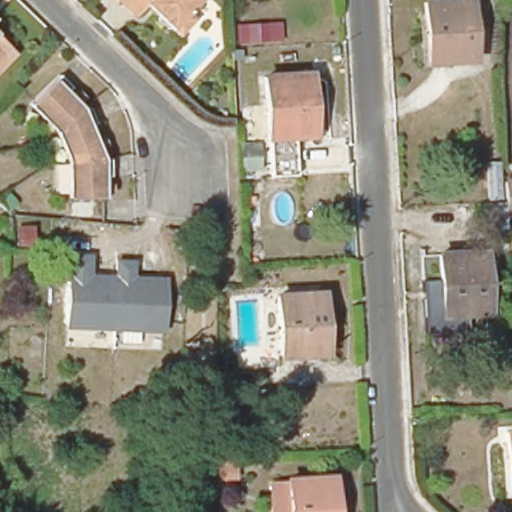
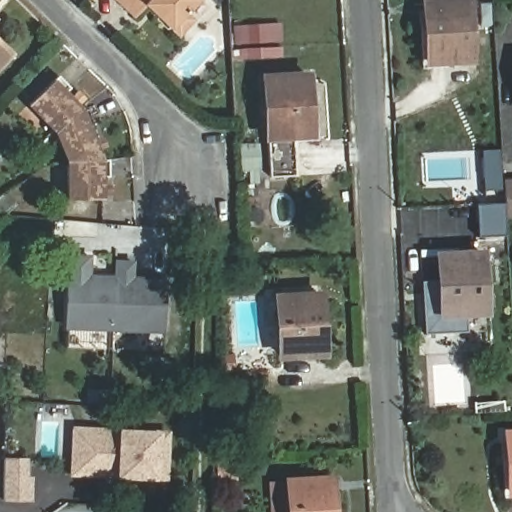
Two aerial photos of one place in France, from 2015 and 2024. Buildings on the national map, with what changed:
unchanged [(180,41),(146,8),(135,20),(115,1),(116,0),(200,0),(202,1),(188,16),(196,23),(180,41)]
unchanged [(428,61),(426,3),(470,0),(472,59),(428,61)]
new [(233,25),(283,22),(285,42),(234,45),(233,25)]
unchanged [(6,52),(0,58),(0,47),(6,52)]
unchanged [(268,137),(265,78),(309,75),(312,134),(268,137)]
unchanged [(89,113),(95,128),(90,131),(103,164),(110,164),(110,181),(104,181),(103,202),(68,202),(67,165),(56,136),(30,109),(60,80),(72,92),(67,96),(81,110),(83,115),(89,113)]
new [(261,172),(241,173),(239,143),(259,142),(260,156),(261,172)]
unchanged [(506,200),(505,180),(512,180),(512,216),(507,216),(506,200)]
unchanged [(165,332),(67,329),(67,253),(93,253),(92,274),(116,275),(117,260),(137,260),(136,275),(167,276),(165,332)]
unchanged [(486,311),(442,314),(438,255),(482,253),(486,311)]
unchanged [(321,298),(325,357),(281,360),(277,301),(321,298)]
new [(168,479),(70,477),(73,426),(171,432),(168,479)]
unchanged [(507,432),(512,432),(512,491),(511,491),(507,432)]
unchanged [(216,463),(217,462),(217,455),(230,454),(239,454),(242,454),(242,461),(239,461),(232,462),(233,474),(216,475),(216,463)]
new [(29,476),(36,476),(35,501),(2,502),(1,457),(29,457),(29,476)]
unchanged [(332,478),(334,512),(289,512),(287,481),(332,478)]
demolished [(4,503),(4,512),(0,512),(0,503),(4,503)]

